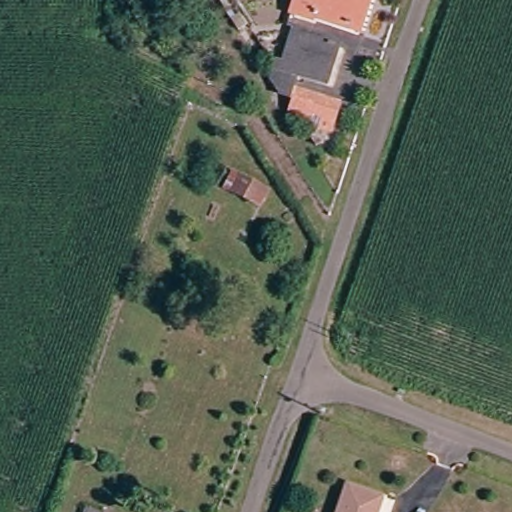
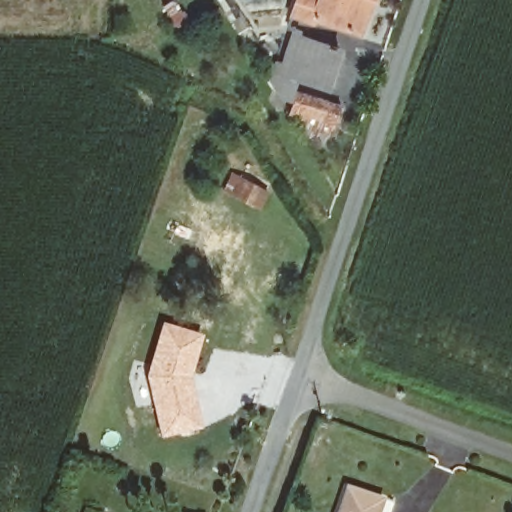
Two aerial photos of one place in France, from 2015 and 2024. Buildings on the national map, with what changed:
unchanged [(308,17),(288,11),(291,0),(366,0),(358,22),(355,30),(325,19),(311,12),(308,17)]
unchanged [(325,80),(298,69),(285,95),(267,69),(272,54),(279,57),(287,39),(290,32),(337,44),(325,80)]
unchanged [(297,90),(338,102),(329,129),(326,127),(324,132),(308,126),(309,122),(288,114),(297,90)]
new [(152,373),(166,325),(195,333),(185,379),(189,404),(191,403),(196,427),(194,432),(164,438),(153,389),(152,373)]
unchanged [(343,491),(378,502),(374,512),(335,512),(343,491)]

